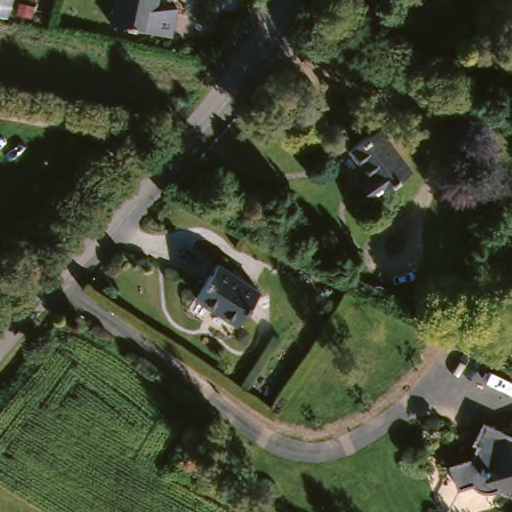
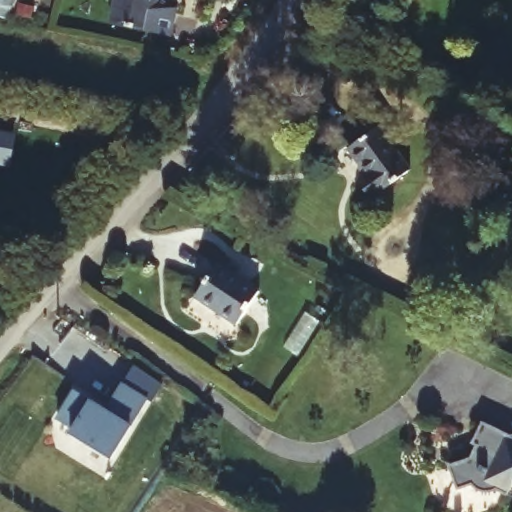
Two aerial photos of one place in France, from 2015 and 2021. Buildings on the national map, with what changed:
unchanged [(6,20),(0,19),(0,0),(12,0),(6,20)]
unchanged [(155,32),(113,24),(119,0),(164,0),(155,32)]
unchanged [(381,123),(410,165),(372,195),(358,177),(366,171),(349,145),(381,123)]
new [(10,169),(0,167),(0,131),(16,134),(10,169)]
unchanged [(209,252),(255,276),(234,316),(188,292),(209,252)]
new [(149,400),(132,425),(112,461),(69,435),(72,429),(56,420),(74,390),(91,401),(106,410),(123,384),(149,400)]
unchanged [(493,484),(489,491),(468,483),(455,486),(449,459),(475,453),(471,441),(479,420),(512,433),(512,484),(508,491),(493,484)]

